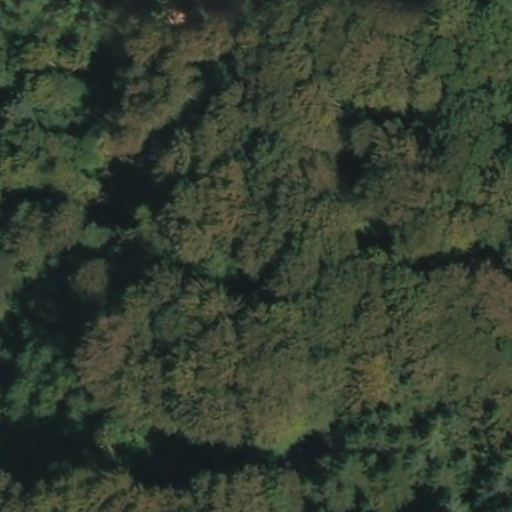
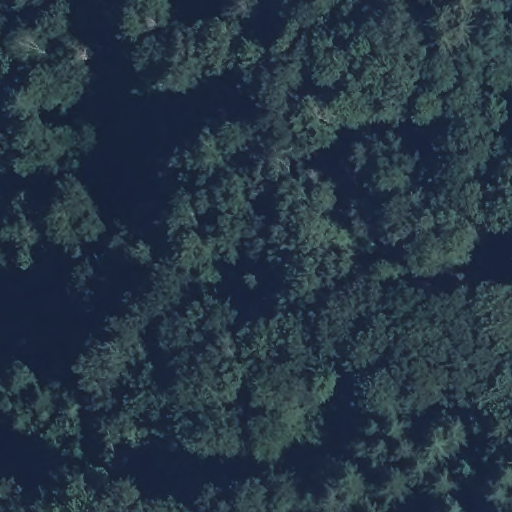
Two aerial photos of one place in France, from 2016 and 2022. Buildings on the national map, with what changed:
[]

